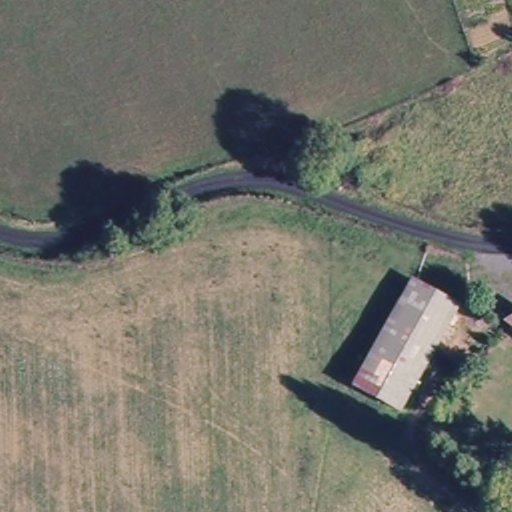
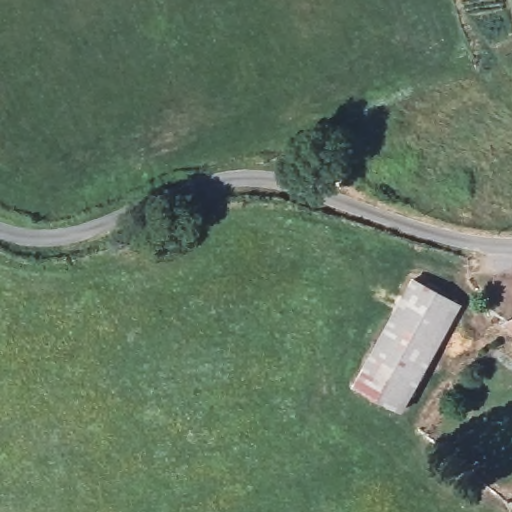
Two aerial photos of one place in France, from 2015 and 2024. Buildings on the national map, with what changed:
unchanged [(463,305),(395,410),(352,377),(419,274),(463,305)]

